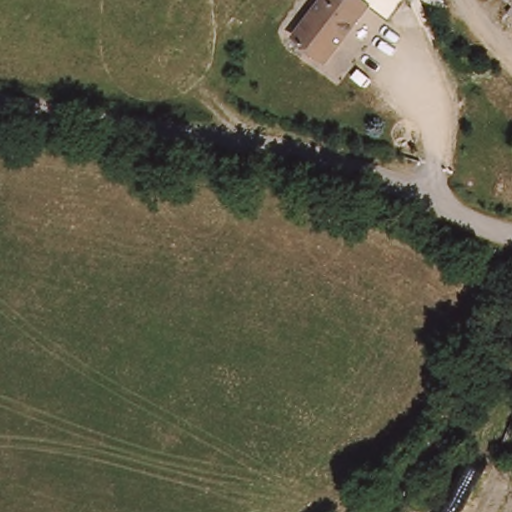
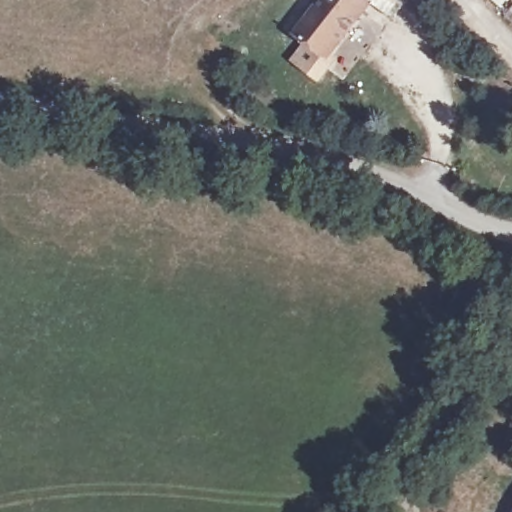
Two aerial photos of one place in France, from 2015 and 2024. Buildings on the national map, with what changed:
unchanged [(291,59),(306,40),(294,31),(320,0),(408,0),(389,23),(372,10),(331,64),(318,81),(291,59)]

